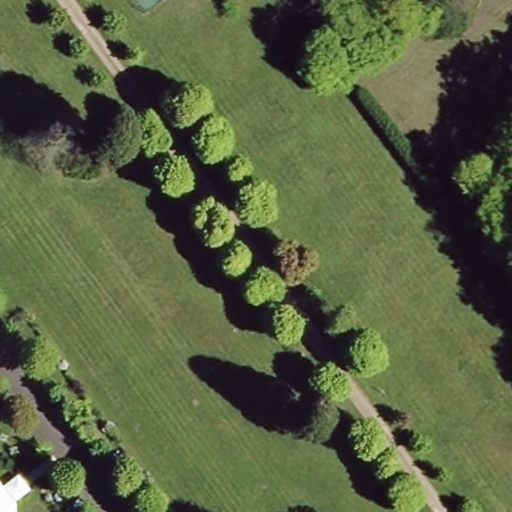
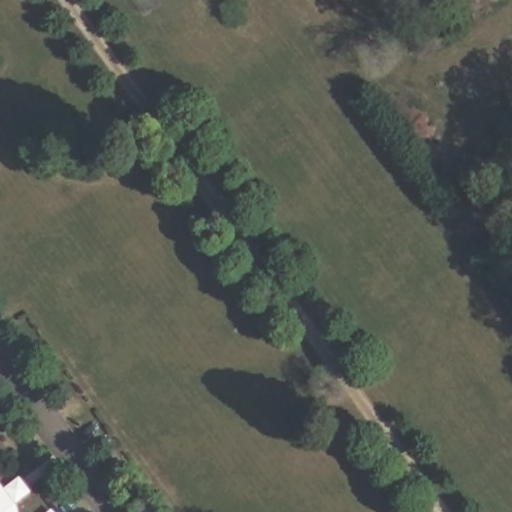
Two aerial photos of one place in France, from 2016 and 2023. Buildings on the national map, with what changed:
unchanged [(18,478),(29,492),(14,505),(15,512),(0,512),(0,486),(2,489),(18,478)]

